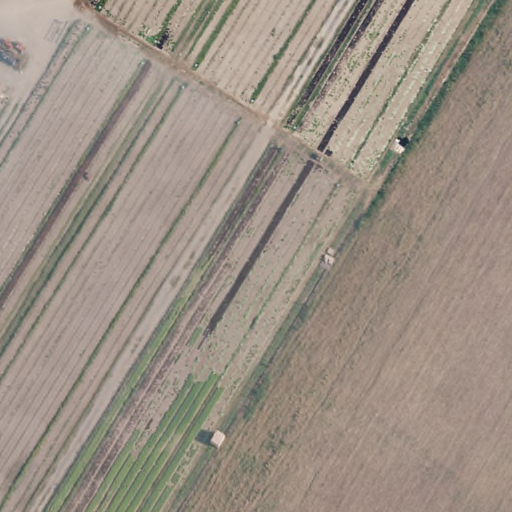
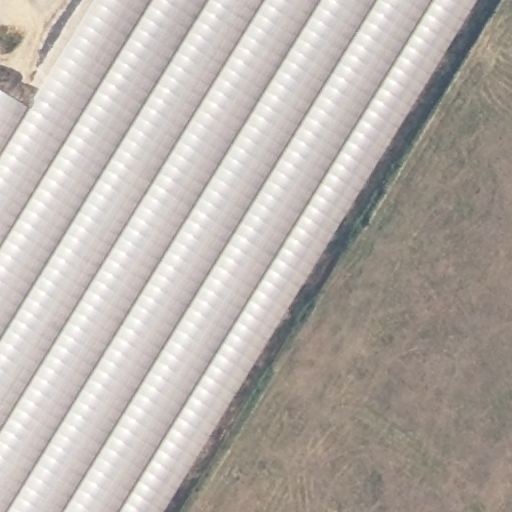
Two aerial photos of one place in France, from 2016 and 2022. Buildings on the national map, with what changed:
new [(29,104),(93,0),(481,0),(164,512),(0,512),(0,87),(29,104)]

